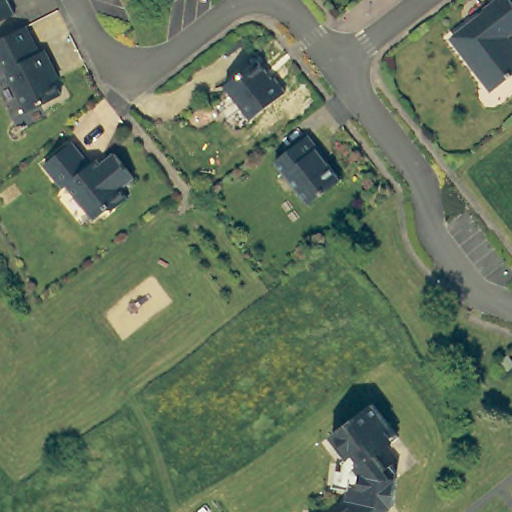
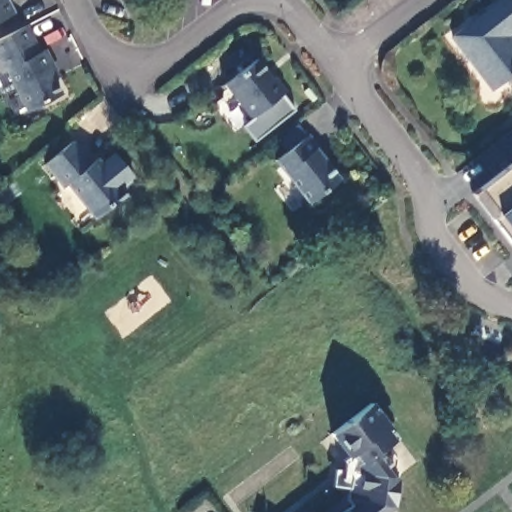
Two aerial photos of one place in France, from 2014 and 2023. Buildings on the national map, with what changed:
unchanged [(15,12),(0,19),(0,0),(8,0),(15,12)]
unchanged [(512,30),(506,35),(512,42),(512,72),(492,88),(451,36),(487,10),(485,6),(493,0),(511,0),(512,2),(512,30)]
unchanged [(26,22),(41,51),(46,48),(54,64),(48,67),(61,91),(29,108),(7,67),(3,69),(0,63),(0,36),(26,22)]
unchanged [(255,56),(270,75),(272,74),(283,89),(249,116),(222,81),(255,56)]
new [(294,110),(255,141),(244,126),(252,120),(249,116),(278,93),(294,110)]
unchanged [(306,132),(338,175),(308,199),(273,157),(306,132)]
unchanged [(130,177),(116,188),(124,198),(119,204),(112,207),(105,206),(91,218),(62,184),(60,186),(41,164),(69,141),(85,162),(92,157),(97,164),(110,152),(130,177)]
new [(512,163),(512,244),(472,193),(512,163)]
unchanged [(353,510),(355,500),(351,500),(352,485),(361,486),(362,473),(358,468),(367,461),(357,449),(348,455),(332,434),(372,404),(389,425),(381,431),(390,443),(377,454),(387,468),(386,478),(394,479),(391,505),(382,512),(342,512),(346,509),(353,510)]

